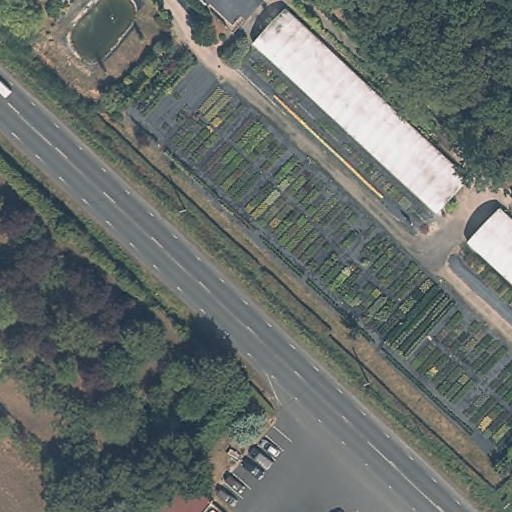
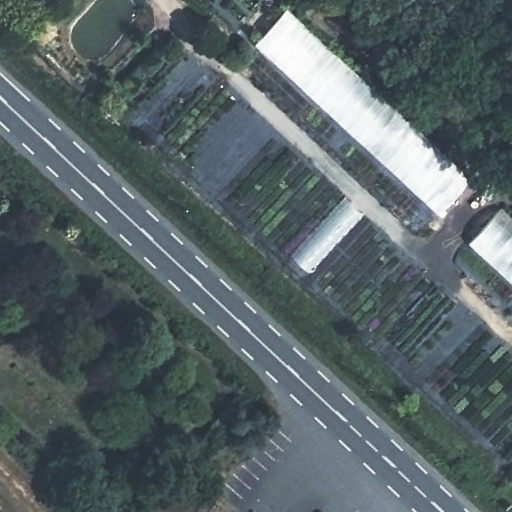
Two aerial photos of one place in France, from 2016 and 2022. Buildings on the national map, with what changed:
unchanged [(255,45),(285,9),(468,180),(437,215),(255,45)]
unchanged [(512,216),(512,288),(465,246),(501,205),(512,216)]
unchanged [(204,512),(153,512),(182,477),(212,502),(204,512)]

